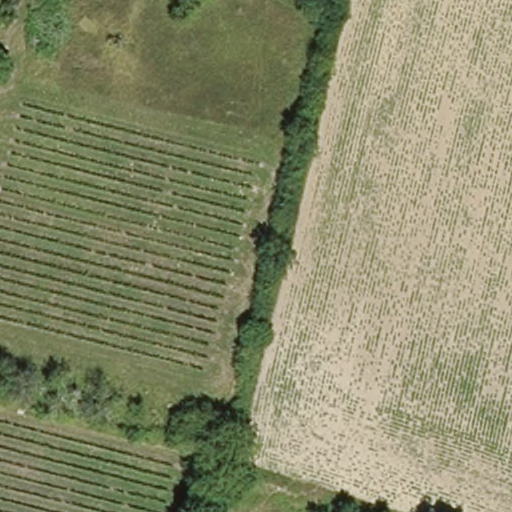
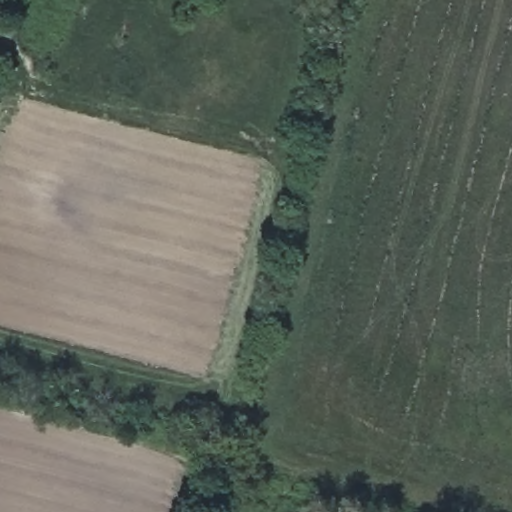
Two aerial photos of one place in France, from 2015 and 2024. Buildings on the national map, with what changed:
[]

